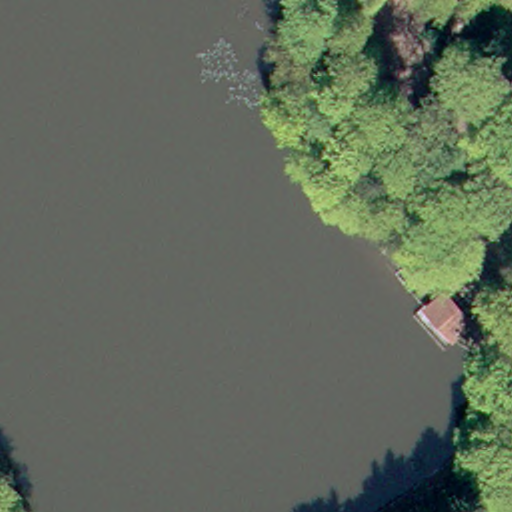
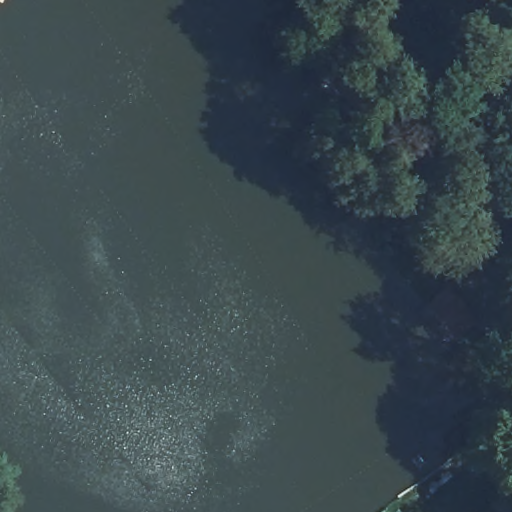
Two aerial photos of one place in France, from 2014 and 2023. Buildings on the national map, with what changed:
unchanged [(453,335),(419,303),(437,283),(472,315),(453,335)]
unchanged [(496,455),(508,470),(487,487),(475,473),(496,455)]

